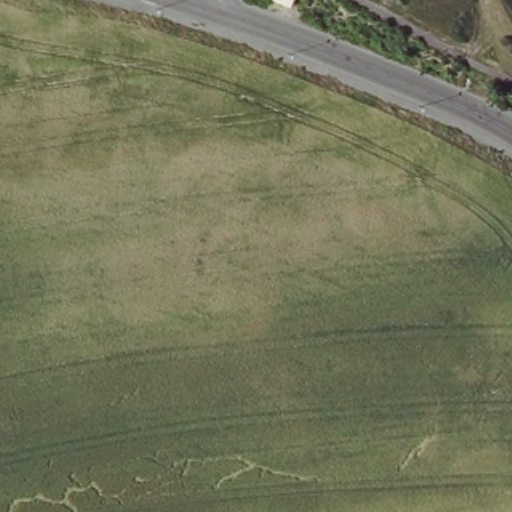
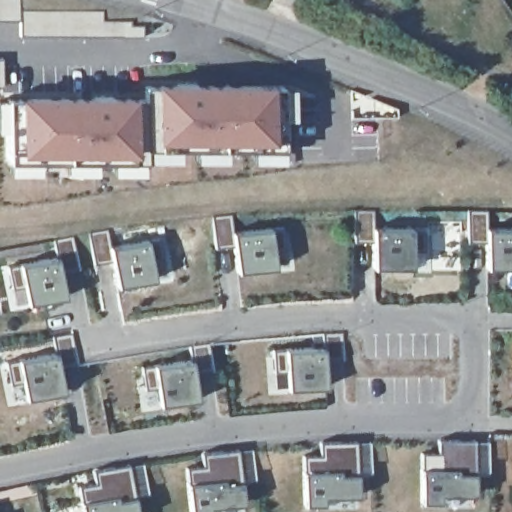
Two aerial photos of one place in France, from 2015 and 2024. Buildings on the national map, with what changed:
new [(150,106),(150,93),(288,96),(289,156),(144,157),(143,166),(137,165),(137,170),(15,171),(12,107),(150,106)]
new [(375,212),(375,234),(427,234),(428,254),(417,254),(417,276),(377,276),(378,245),(355,245),(354,212),(375,212)]
new [(489,215),(489,233),(512,233),(512,276),(488,275),(488,247),(467,246),(468,214),(489,215)]
new [(231,218),(232,237),(282,233),(284,251),(275,252),(277,275),(240,278),(237,248),(215,249),(212,219),(231,218)]
new [(107,233),(111,253),(160,245),(163,263),(152,264),(155,286),(120,292),(115,263),(94,266),(88,235),(107,233)]
new [(58,261),(55,244),(73,241),(78,272),(64,274),(68,302),(32,309),(28,289),(15,291),(10,270),(58,261)]
new [(327,353),(327,336),(342,336),(343,360),(329,361),(330,395),(292,396),(292,375),(276,375),(275,354),(327,353)]
new [(57,358),(55,340),(73,338),(77,366),(62,369),(67,399),(30,406),(27,385),(15,387),(12,367),(57,358)]
new [(158,370),(158,373),(193,369),(191,347),(209,346),(212,374),(198,376),(201,405),(163,411),(161,389),(147,391),(144,372),(158,370)]
new [(445,459),(446,446),(477,448),(492,448),(492,476),(478,476),(478,501),(444,501),(445,510),(429,510),(426,459),(445,459)]
new [(373,448),(373,481),(362,482),(362,503),(327,504),(327,511),(310,511),(310,463),(327,463),(325,448),(373,448)]
new [(257,485),(246,486),(249,510),(225,512),(198,512),(193,474),(209,472),(208,459),(254,455),(257,485)]
new [(150,500),(138,502),(139,512),(87,512),(84,493),(102,490),(100,476),(145,469),(150,500)]

